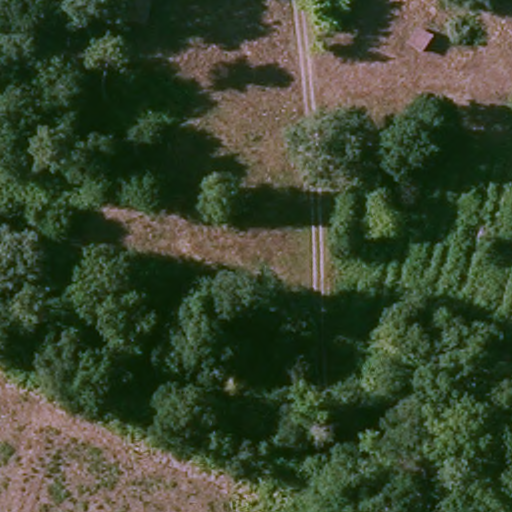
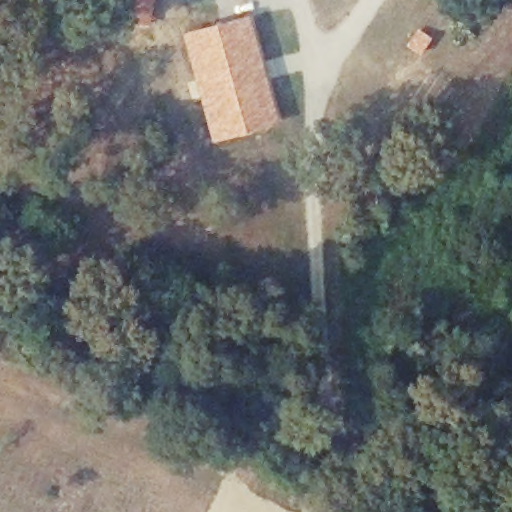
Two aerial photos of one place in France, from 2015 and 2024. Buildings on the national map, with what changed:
demolished [(121,14),(124,0),(147,0),(144,17),(121,14)]
new [(122,24),(126,0),(151,0),(147,29),(122,24)]
new [(250,14),(280,123),(211,143),(181,33),(250,14)]
unchanged [(401,29),(409,16),(418,22),(412,35),(401,29)]
new [(412,50),(420,37),(429,43),(422,56),(412,50)]

